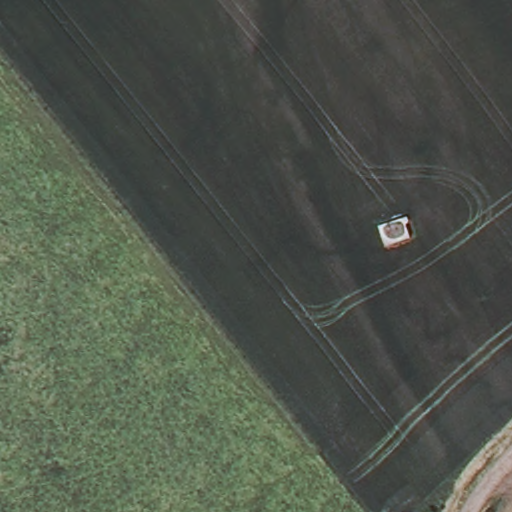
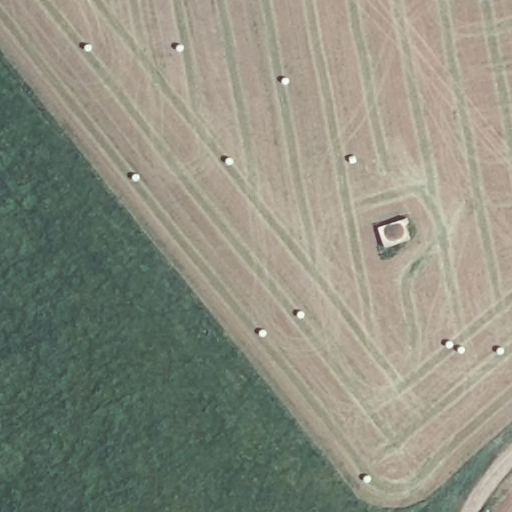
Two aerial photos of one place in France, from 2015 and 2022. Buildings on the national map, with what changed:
unchanged [(380,247),(377,224),(407,219),(410,240),(380,247)]

